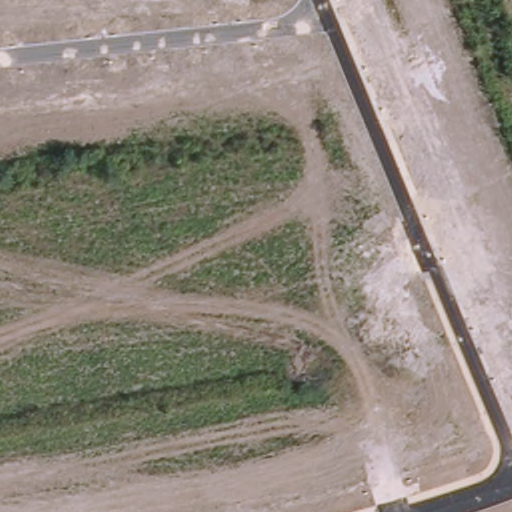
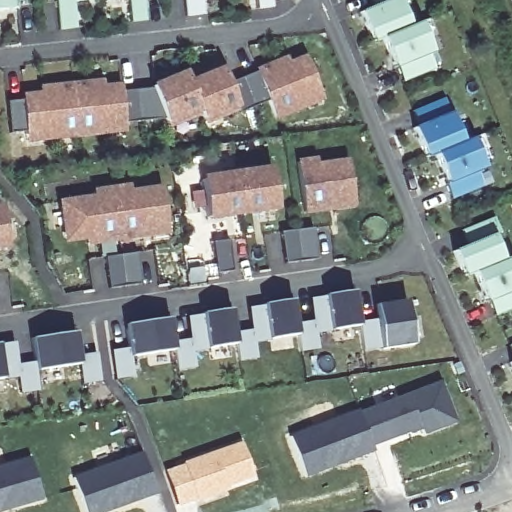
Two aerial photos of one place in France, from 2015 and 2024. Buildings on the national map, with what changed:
unchanged [(0,9),(0,0),(15,0),(15,7),(0,9)]
unchanged [(74,29),(58,31),(55,0),(82,0),(72,1),(74,29)]
unchanged [(130,21),(127,0),(143,0),(145,21),(130,21)]
unchanged [(185,17),(184,0),(199,0),(200,15),(185,17)]
unchanged [(256,9),(255,0),(272,0),(273,8),(256,9)]
unchanged [(420,21),(432,53),(427,56),(435,69),(404,83),(397,69),(382,37),(372,41),(360,12),(369,8),(368,0),(399,0),(410,26),(420,21)]
new [(279,119),(269,100),(240,107),(204,124),(201,111),(169,127),(165,118),(125,122),(127,132),(27,143),(26,131),(11,132),(8,102),(23,101),(23,94),(40,92),(40,86),(104,78),(104,84),(122,83),(122,89),(151,85),(185,71),(189,79),(222,66),(229,82),(257,72),(256,69),(287,56),(289,61),(305,55),(325,99),(279,119)]
new [(451,111),(463,141),(472,138),(485,170),(475,174),(482,186),(452,199),(447,185),(437,153),(427,157),(415,128),(410,111),(445,98),(451,111)]
new [(354,208),(303,214),(297,159),(317,157),(317,162),(347,159),(354,208)]
new [(270,166),(277,210),(207,220),(201,176),(270,166)]
new [(93,195),(92,190),(130,184),(130,189),(160,186),(167,234),(89,246),(87,241),(65,244),(57,200),(93,195)]
new [(0,249),(0,205),(1,205),(5,249),(0,249)]
unchanged [(495,316),(487,303),(475,272),(465,276),(454,249),(467,244),(461,231),(494,217),(499,231),(493,233),(504,259),(512,256),(512,309),(495,316)]
new [(314,228),(319,259),(302,262),(287,264),(282,233),(298,230),(314,228)]
new [(231,241),(236,271),(220,274),(215,243),(231,241)]
new [(140,253),(145,283),(129,286),(112,289),(107,257),(124,255),(140,253)]
new [(380,349),(362,350),(359,326),(330,330),(318,334),(320,349),(300,351),(297,334),(269,339),(255,343),(257,358),(239,361),(235,344),(206,348),(194,352),(195,366),(177,370),(174,349),(130,357),(134,376),(115,379),(112,351),(127,348),(126,325),(170,319),(172,341),(189,339),(187,317),(202,313),(232,309),(234,332),(250,331),(248,309),(262,305),(294,300),(297,323),(312,320),(309,298),(325,295),(354,290),(357,321),(375,319),(374,304),(405,300),(412,344),(380,349)]
new [(18,364),(34,361),(32,339),(76,333),(77,355),(97,353),(100,381),(82,384),(79,363),(35,370),(38,390),(19,394),(18,377),(4,377),(0,378),(0,343),(15,342),(18,364)]
unchanged [(509,346),(512,344),(512,356),(509,346)]
unchanged [(510,361),(512,360),(512,366),(510,361)]
new [(420,428),(374,445),(362,413),(439,383),(455,423),(422,434),(420,428)]
new [(362,413),(377,452),(308,477),(294,439),(362,413)]
new [(184,462),(240,442),(253,476),(225,487),(227,491),(197,501),(184,462)]
new [(141,453),(155,492),(99,512),(85,512),(72,477),(141,453)]
new [(42,498),(0,510),(0,466),(32,458),(42,498)]

